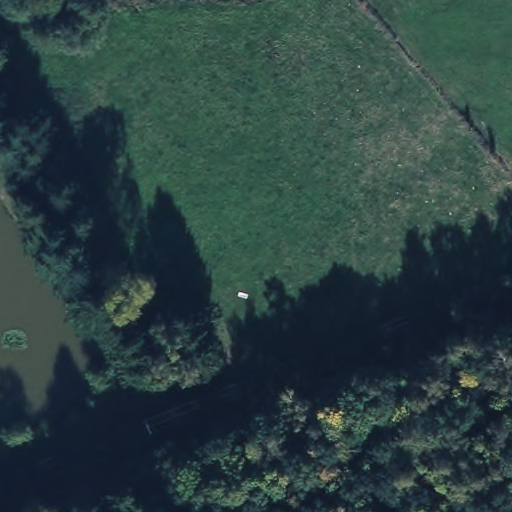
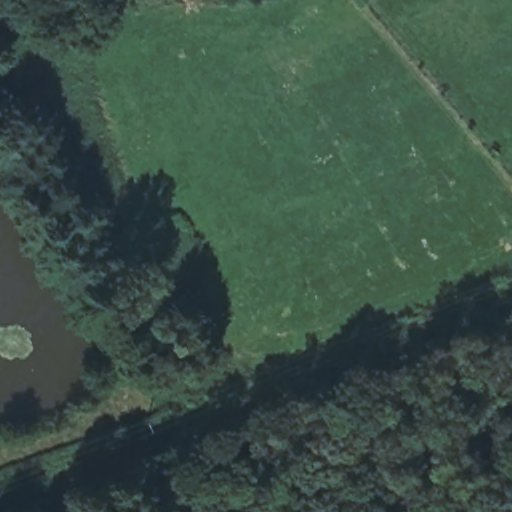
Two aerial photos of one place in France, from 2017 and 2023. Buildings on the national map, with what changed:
unchanged [(128,259),(144,288),(123,300),(104,273),(128,259)]

